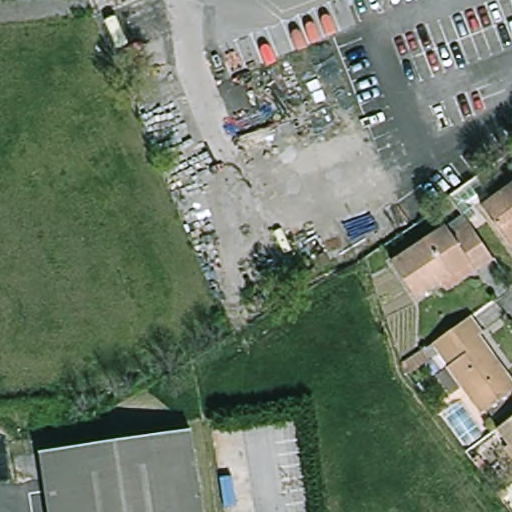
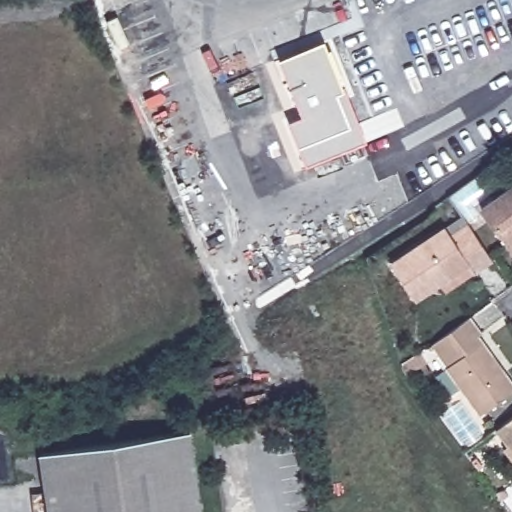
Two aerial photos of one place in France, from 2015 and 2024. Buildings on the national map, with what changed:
new [(306,166),(289,121),(302,115),(279,59),(324,40),(343,86),(345,85),(367,142),(306,166)]
unchanged [(495,196),(512,184),(512,236),(487,202),(495,196)]
unchanged [(442,282),(417,299),(392,261),(462,217),(493,260),(476,271),(448,290),(442,282)]
unchanged [(439,345),(441,343),(442,342),(451,336),(476,317),(487,333),(482,336),(487,343),(512,378),(512,393),(486,411),(464,379),(453,387),(440,368),(450,361),(439,345)]
unchanged [(436,359),(414,375),(413,373),(410,366),(430,351),(436,359)]
unchanged [(512,420),(512,442),(501,428),(512,420)]
unchanged [(52,512),(40,447),(60,444),(188,422),(189,427),(204,512),(52,512)]
demolished [(8,441),(20,512),(0,512),(0,443),(8,441)]

